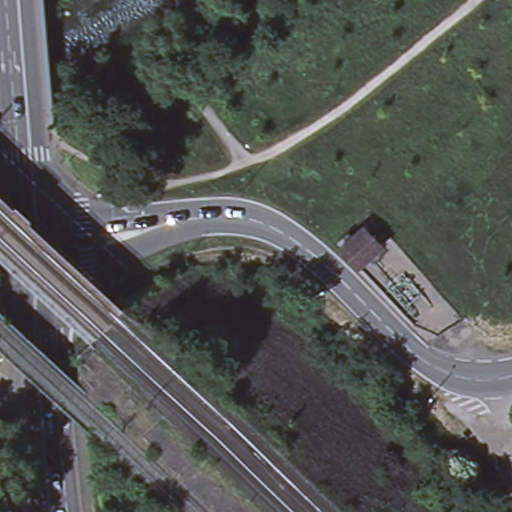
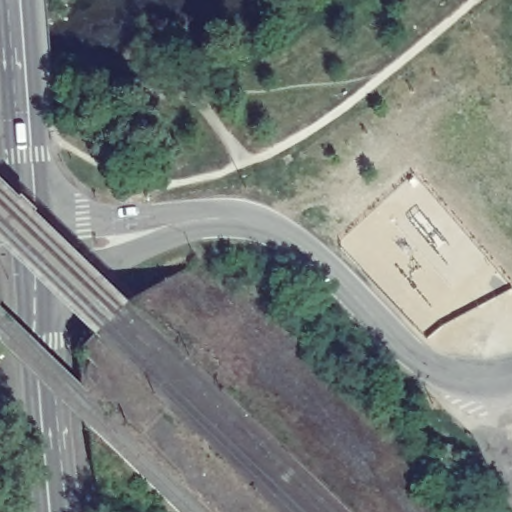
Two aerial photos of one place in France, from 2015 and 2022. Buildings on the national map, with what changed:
unchanged [(359,268),(340,248),(348,241),(344,237),(349,232),(353,237),(366,224),(385,244),(359,268)]

